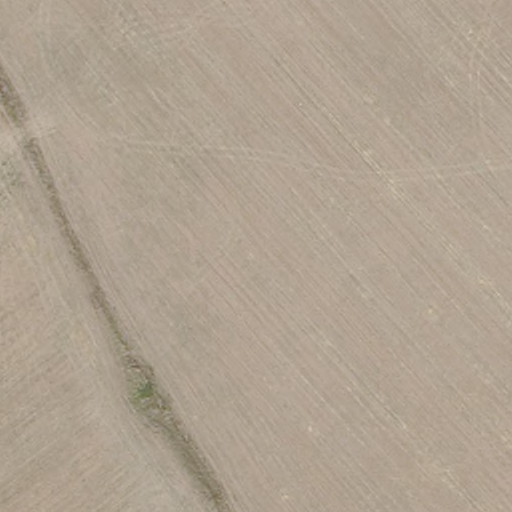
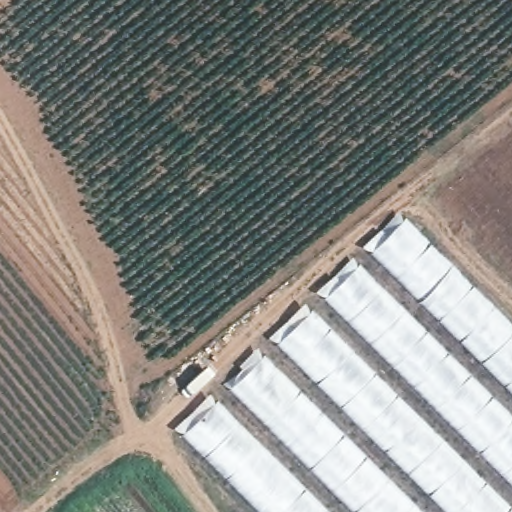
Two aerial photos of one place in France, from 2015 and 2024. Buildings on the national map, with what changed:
new [(512,323),(512,512),(260,512),(182,434),(405,216),(512,323)]

